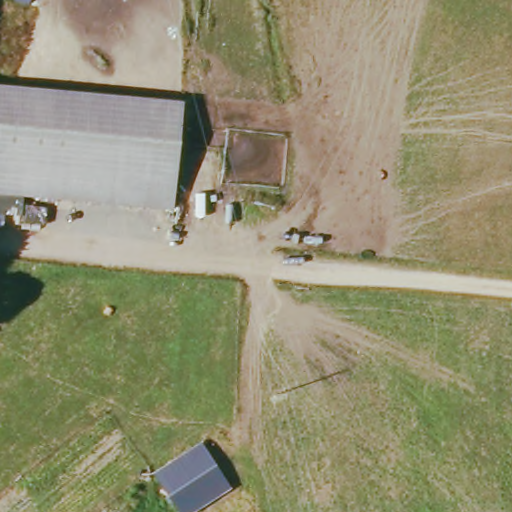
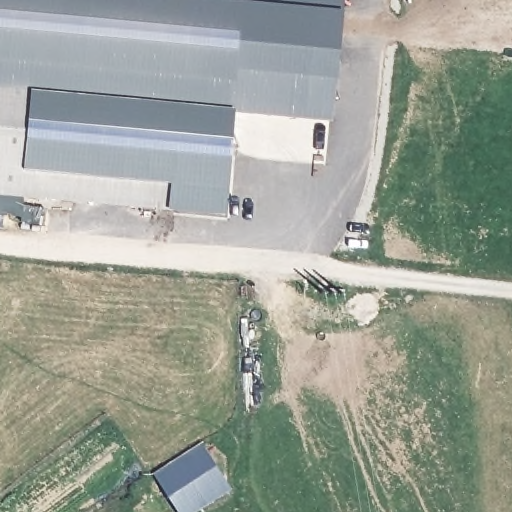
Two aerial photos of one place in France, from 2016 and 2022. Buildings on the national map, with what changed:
new [(226,152),(184,150),(188,100),(0,84),(0,0),(333,0),(327,155),(226,152)]
unchanged [(188,100),(184,150),(226,152),(221,212),(0,194),(0,84),(188,100)]
unchanged [(203,442),(232,487),(194,512),(180,512),(156,471),(203,442)]

